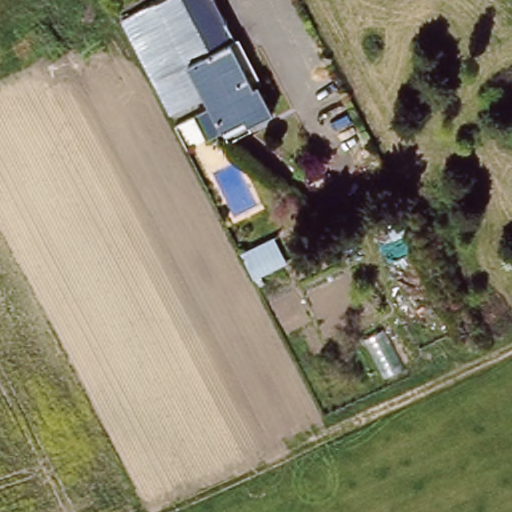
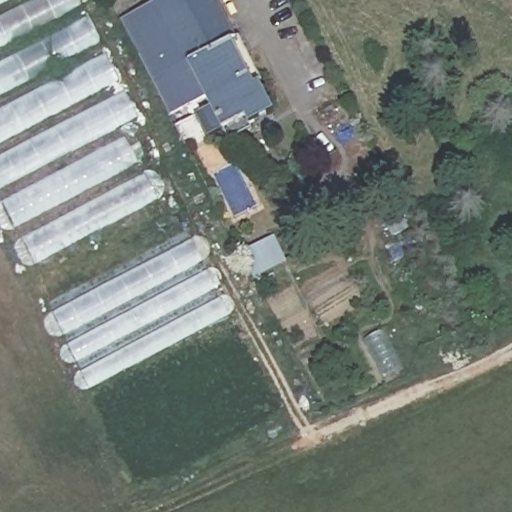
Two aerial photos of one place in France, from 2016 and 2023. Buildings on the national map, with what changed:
new [(118,126),(156,195),(33,260),(0,199),(0,0),(79,0),(139,115),(118,126)]
unchanged [(155,0),(205,97),(167,118),(117,19),(155,0)]
unchanged [(225,45),(248,89),(255,84),(270,114),(225,136),(205,97),(155,0),(211,0),(232,40),(225,45)]
unchanged [(285,265),(250,280),(238,255),(270,241),(285,265)]

